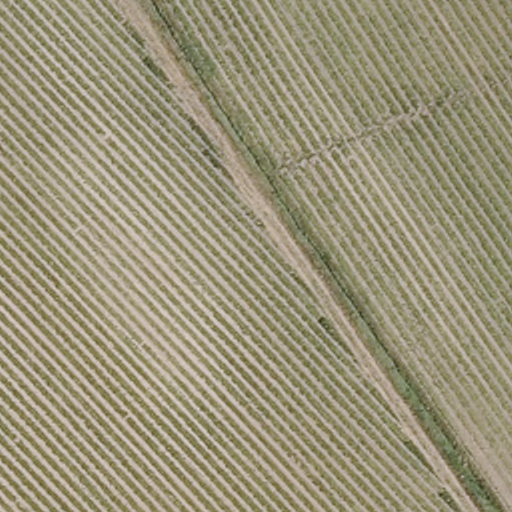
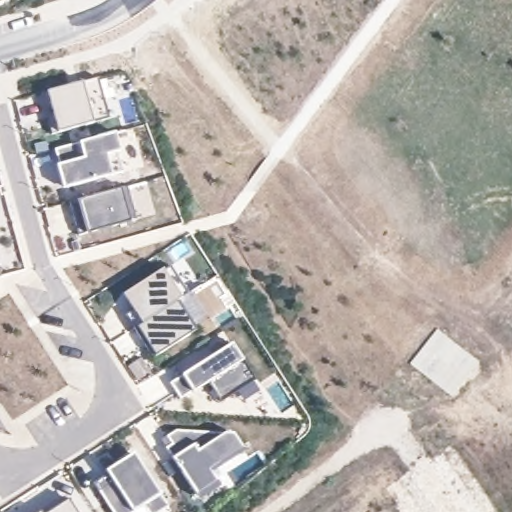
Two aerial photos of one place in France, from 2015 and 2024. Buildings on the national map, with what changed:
new [(0,5),(0,0),(1,0),(4,3),(0,5)]
new [(106,119),(52,134),(41,93),(98,77),(105,101),(110,118),(106,119)]
new [(55,149),(112,133),(123,172),(66,187),(62,172),(60,165),(55,149)]
new [(127,186),(136,219),(79,235),(70,202),(127,186)]
new [(126,315),(135,309),(126,295),(171,265),(190,293),(135,328),(126,315)]
new [(177,301),(194,328),(155,354),(135,328),(177,301)]
new [(183,373),(232,343),(243,359),(254,379),(223,399),(211,378),(193,388),(180,399),(170,384),(183,373)]
new [(174,430),(223,431),(233,433),(244,448),(211,470),(221,486),(200,500),(173,458),(160,438),(174,430)]
new [(136,456),(169,507),(162,512),(146,512),(142,506),(134,512),(113,512),(94,483),(136,456)]
new [(68,500),(76,512),(51,512),(68,500)]

